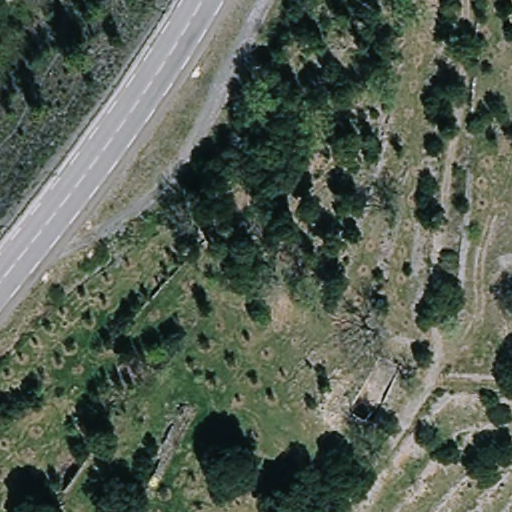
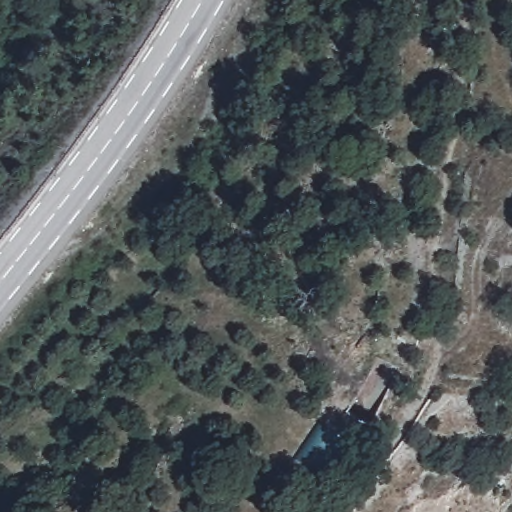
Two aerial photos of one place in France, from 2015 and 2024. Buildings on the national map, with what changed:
[]

